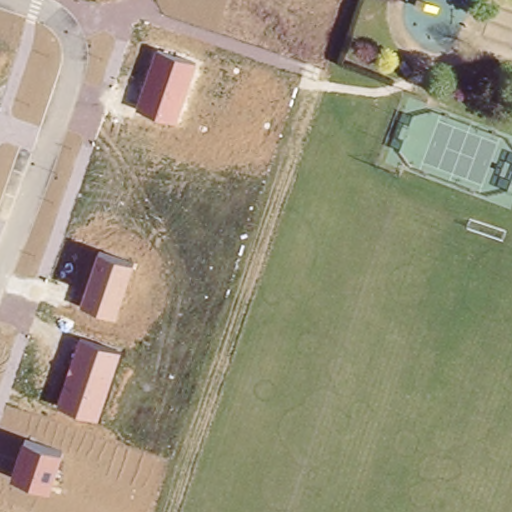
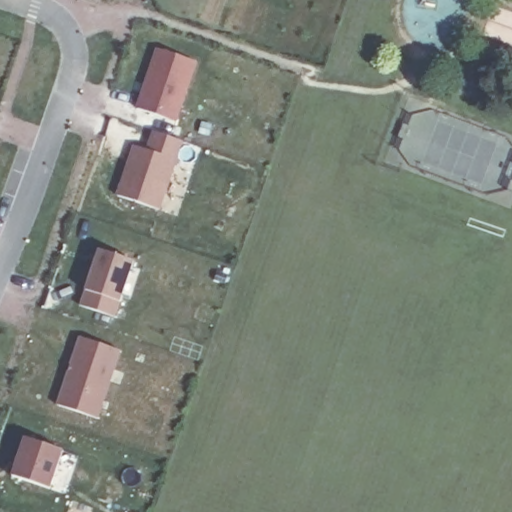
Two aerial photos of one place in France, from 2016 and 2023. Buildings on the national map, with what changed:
unchanged [(136,109),(158,50),(196,66),(177,124),(136,109)]
new [(133,147),(148,152),(153,134),(182,143),(161,209),(115,196),(133,147)]
unchanged [(80,306),(99,252),(135,264),(116,319),(80,306)]
unchanged [(58,406),(80,338),(121,351),(98,420),(58,406)]
unchanged [(25,438),(63,452),(51,492),(13,477),(25,438)]

